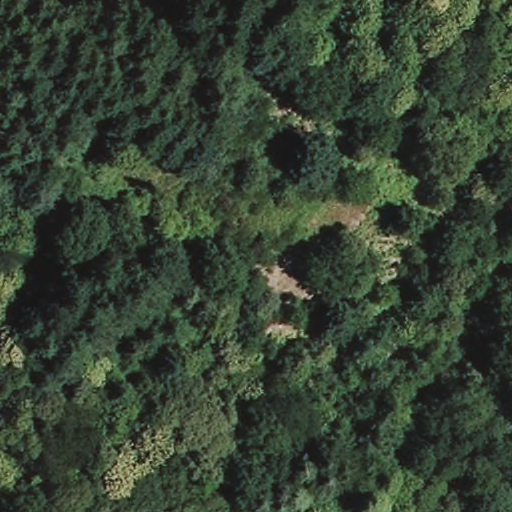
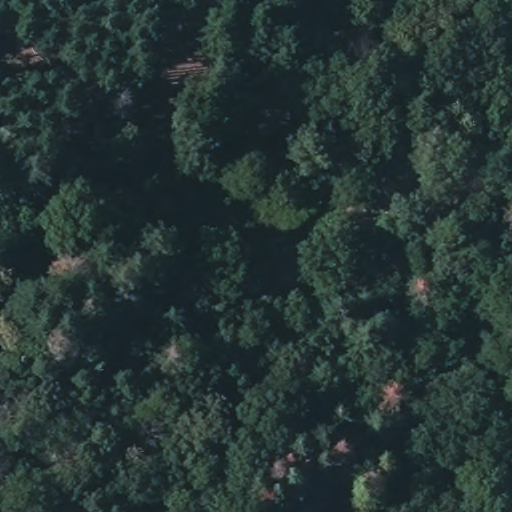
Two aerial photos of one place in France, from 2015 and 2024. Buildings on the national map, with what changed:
unchanged [(239,44),(233,60),(218,56),(223,39),(239,44)]

